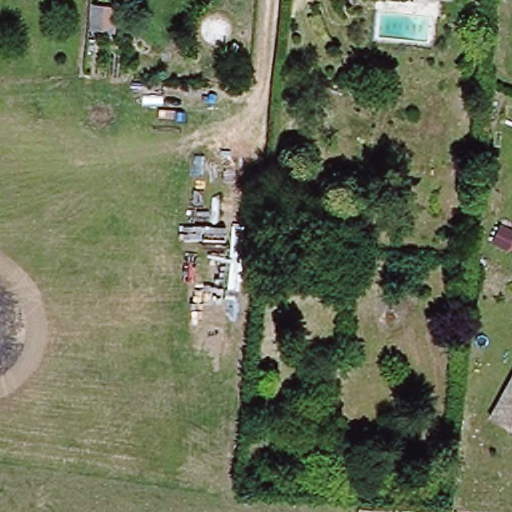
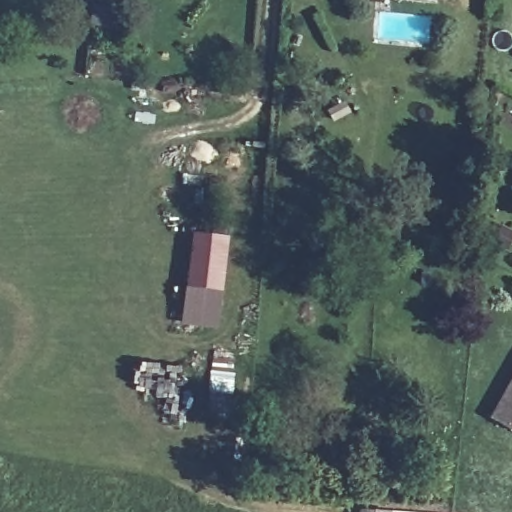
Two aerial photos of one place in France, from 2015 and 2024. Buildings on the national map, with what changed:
unchanged [(491,242),(500,226),(512,232),(512,237),(506,250),(491,242)]
new [(183,324),(193,232),(229,237),(218,328),(183,324)]
unchanged [(493,420),(512,384),(512,430),(493,420)]

